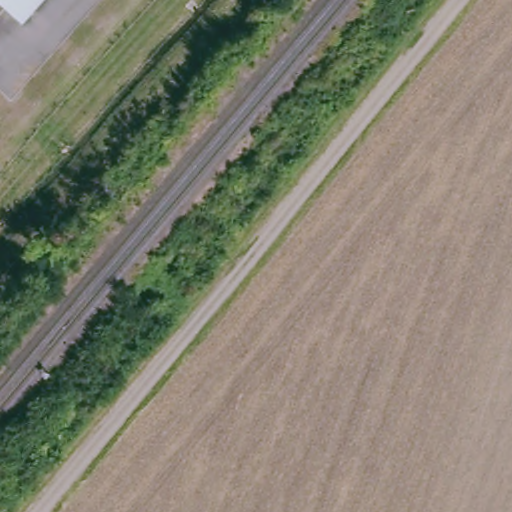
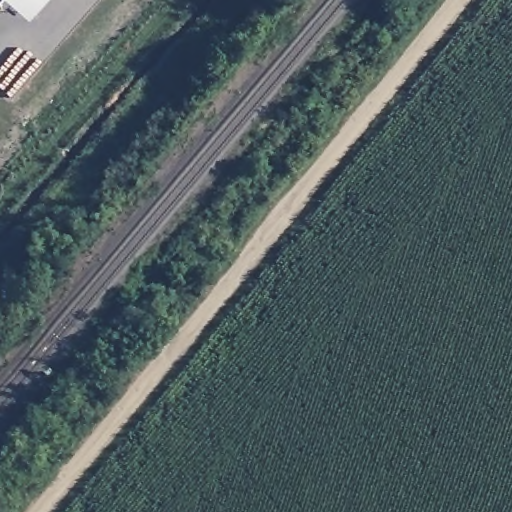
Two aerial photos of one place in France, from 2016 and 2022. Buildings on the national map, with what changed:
unchanged [(1,0),(0,1),(0,0),(1,0)]

